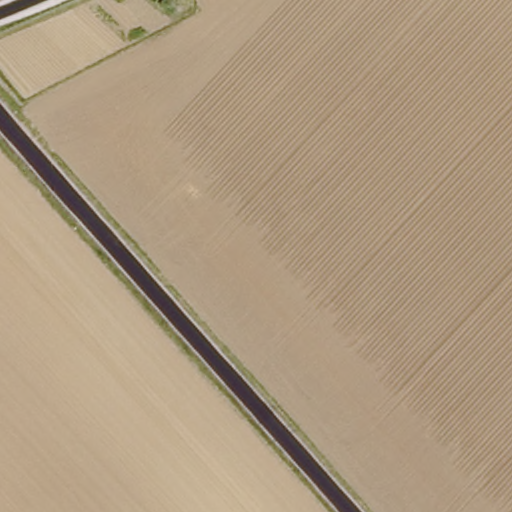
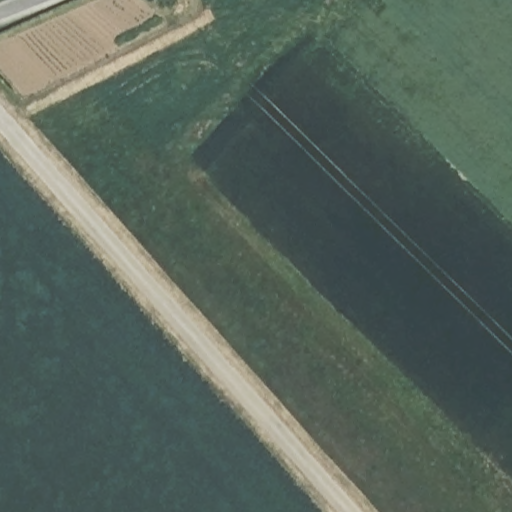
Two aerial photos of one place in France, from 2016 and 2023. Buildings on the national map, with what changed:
[]

